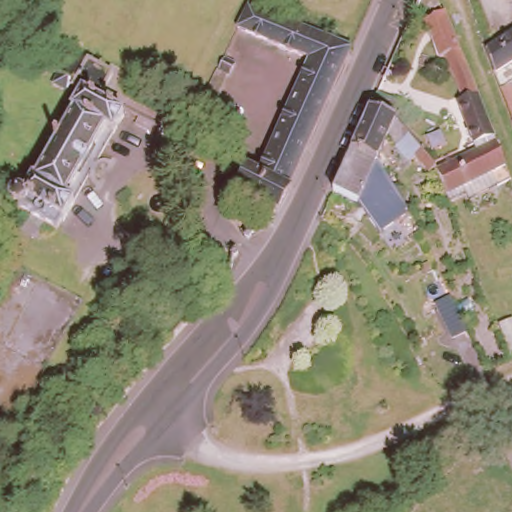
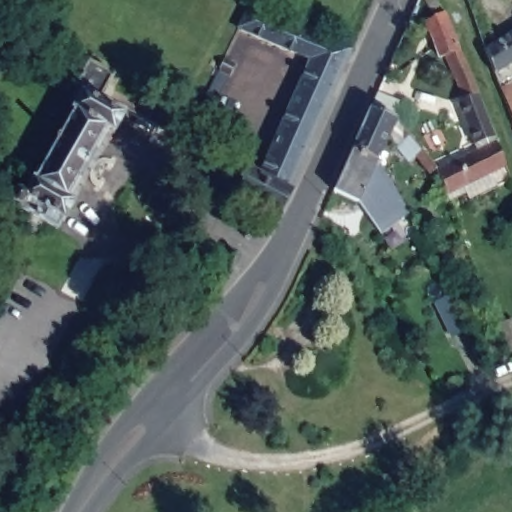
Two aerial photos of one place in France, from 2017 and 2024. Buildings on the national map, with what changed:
unchanged [(242,194),(254,170),(263,175),(313,59),(243,29),(253,8),(355,52),(282,215),(279,214),(242,194)]
unchanged [(445,189),(435,166),(475,146),(457,98),(462,95),(445,51),(437,54),(423,18),(444,9),(504,162),(490,169),(495,182),(467,194),(465,189),(447,197),(445,189)]
unchanged [(512,58),(494,69),(485,44),(512,26),(512,58)]
unchanged [(112,71),(98,97),(121,110),(110,129),(110,128),(71,198),(72,199),(62,216),(61,215),(56,224),(16,202),(17,200),(15,199),(12,198),(10,195),(10,192),(12,189),(15,187),(17,187),(20,188),(22,189),(22,192),(32,174),(35,175),(56,139),(54,138),(57,133),(59,134),(73,108),(70,105),(79,89),(73,86),(68,89),(52,80),(57,71),(63,75),(77,49),(112,71)]
unchanged [(233,64),(228,74),(222,71),(211,94),(217,97),(212,107),(202,103),(223,60),(233,64)]
unchanged [(387,131),(379,149),(383,151),(391,163),(383,168),(375,156),(350,145),(369,104),(376,87),(398,97),(392,113),(395,114),(435,165),(422,174),(387,131)]
unchanged [(512,87),(512,109),(505,91),(512,87)]
unchanged [(194,134),(188,144),(175,136),(180,126),(194,134)]
unchanged [(400,214),(378,229),(355,195),(332,185),(350,145),(375,156),(383,168),(409,208),(413,215),(405,221),(400,214)]
unchanged [(465,376),(461,366),(480,357),(485,368),(465,376)]

